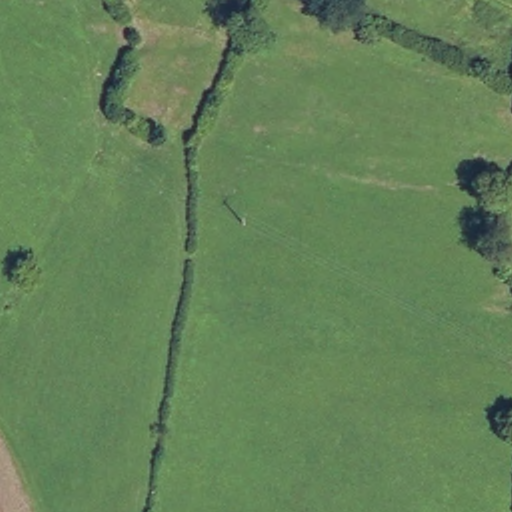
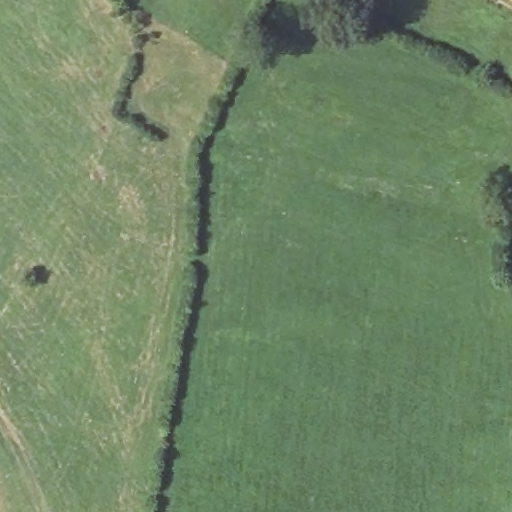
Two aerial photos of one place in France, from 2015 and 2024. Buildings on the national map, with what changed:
[]

